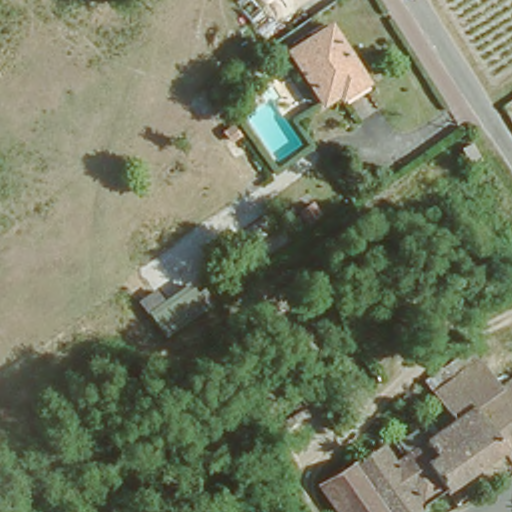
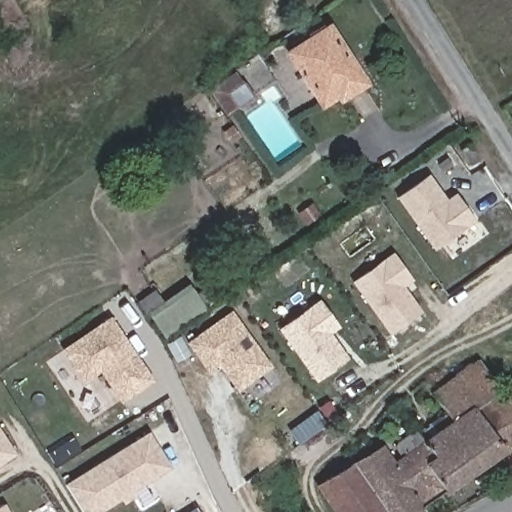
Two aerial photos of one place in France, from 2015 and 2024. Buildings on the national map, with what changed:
unchanged [(344,91),(348,97),(332,107),(318,86),(293,46),(328,20),(355,60),(365,76),(344,91)]
unchanged [(235,106),(225,114),(206,86),(232,67),(241,79),(251,94),(235,106)]
new [(431,175),(449,200),(457,194),(476,219),(437,247),(402,197),(431,175)]
new [(395,254),(412,279),(404,286),(422,311),(392,333),(356,282),(395,254)]
unchanged [(200,297),(160,325),(136,290),(149,280),(161,296),(187,278),(200,297)]
new [(322,299),(341,325),(332,332),(351,357),(320,379),(283,328),(322,299)]
new [(235,311),(275,365),(242,389),(224,363),(212,370),(192,342),(235,311)]
new [(112,313),(156,379),(122,402),(101,371),(86,381),(62,347),(112,313)]
unchanged [(452,412),(432,383),(425,373),(444,360),(451,371),(477,354),(497,383),(512,373),(512,431),(465,464),(424,493),(426,495),(400,512),(341,512),(326,489),(318,479),(316,476),(348,454),(381,433),(393,450),(452,412)]
new [(0,465),(0,425),(18,453),(0,465)]
new [(174,467),(100,512),(88,512),(65,479),(152,430),(174,467)]
new [(11,512),(0,512),(0,504),(5,501),(11,512)]

